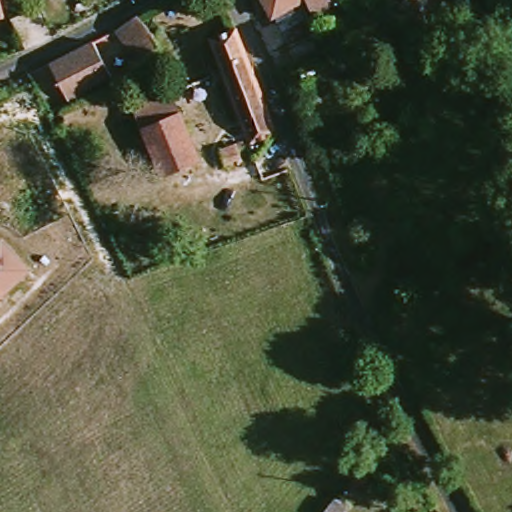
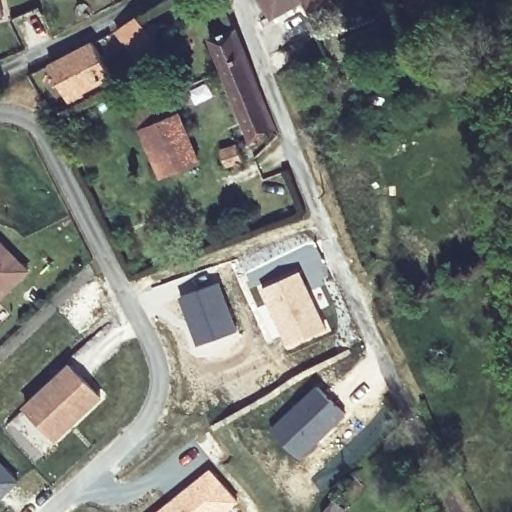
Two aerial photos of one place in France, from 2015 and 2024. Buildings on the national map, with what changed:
unchanged [(0,22),(0,0),(2,0),(6,21),(0,22)]
unchanged [(297,10),(267,24),(257,0),(292,0),(297,10)]
unchanged [(337,6),(315,21),(306,5),(297,10),(292,0),(334,0),(337,6)]
unchanged [(395,9),(387,0),(407,0),(395,9)]
unchanged [(140,20),(164,50),(130,72),(120,55),(130,49),(120,33),(140,20)]
unchanged [(250,142),(210,38),(234,28),(275,132),(250,142)]
unchanged [(50,69),(96,46),(111,79),(84,95),(85,100),(70,108),(50,69)]
unchanged [(201,163),(164,180),(137,112),(174,97),(201,163)]
unchanged [(246,163),(225,172),(220,157),(240,149),(242,153),(246,163)]
new [(300,269),(327,331),(285,350),(257,287),(300,269)]
new [(218,280),(237,331),(194,346),(176,296),(218,280)]
new [(72,366),(101,397),(55,440),(26,409),(72,366)]
new [(316,384),(345,415),(302,456),(272,425),(316,384)]
new [(0,494),(0,465),(15,480),(0,494)]
new [(237,503),(227,512),(154,512),(209,468),(237,503)]

